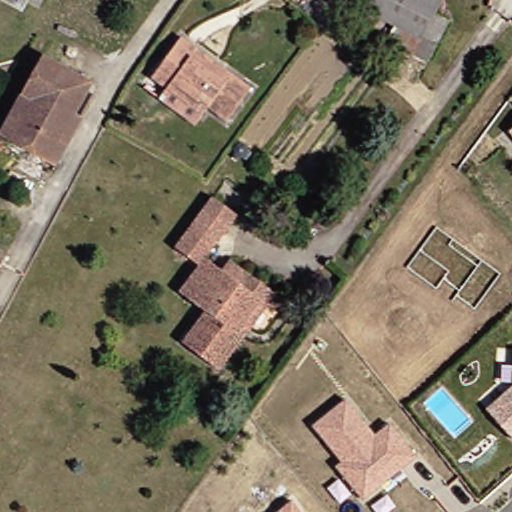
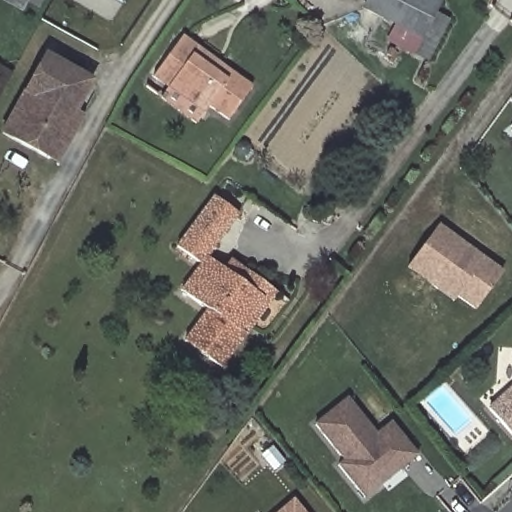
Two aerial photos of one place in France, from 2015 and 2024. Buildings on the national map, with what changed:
new [(33,0),(34,0),(34,1),(33,0)]
unchanged [(384,25),(354,10),(359,0),(426,0),(430,2),(424,14),(439,21),(427,46),(418,63),(376,41),(384,25)]
unchanged [(157,89),(143,79),(153,65),(173,38),(187,48),(211,66),(241,87),(216,120),(198,107),(192,115),(185,125),(150,99),(157,89)]
unchanged [(39,160),(3,140),(0,138),(0,120),(15,93),(35,56),(81,82),(65,113),(74,118),(49,165),(39,160)]
unchanged [(512,131),(512,134),(510,132),(512,131)]
unchanged [(265,298),(233,343),(211,373),(175,347),(197,316),(171,297),(190,270),(175,259),(167,253),(203,203),(212,209),(227,220),(195,265),(226,287),(234,276),(265,298)]
new [(503,270),(475,312),(458,300),(454,306),(406,271),(441,223),(503,270)]
unchanged [(487,411),(512,389),(512,438),(487,411)]
unchanged [(388,493),(382,485),(364,499),(338,467),(344,462),(315,426),(347,400),(376,436),(391,425),(417,457),(401,470),(408,478),(388,493)]
unchanged [(292,499),(303,512),(277,512),(292,499)]

